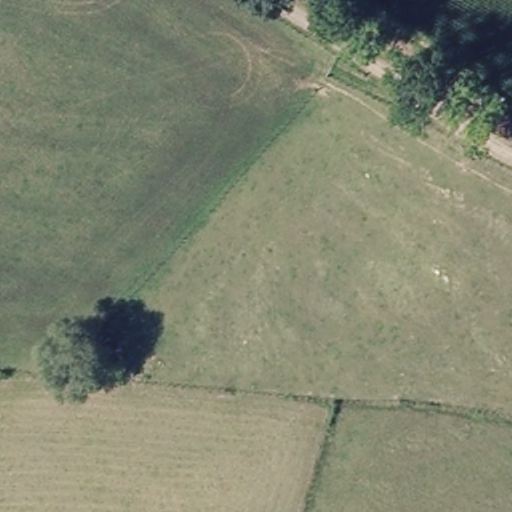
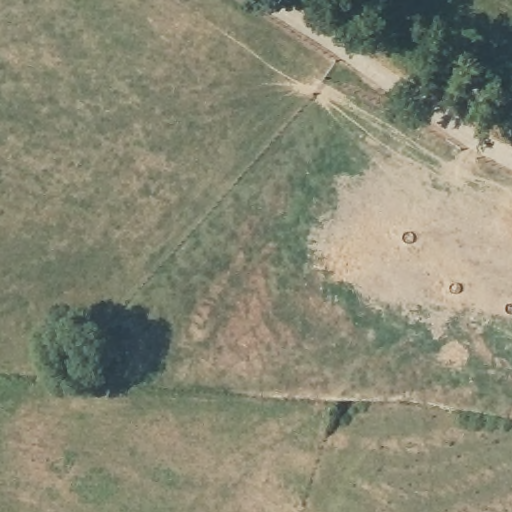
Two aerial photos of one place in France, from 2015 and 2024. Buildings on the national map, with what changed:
[]

